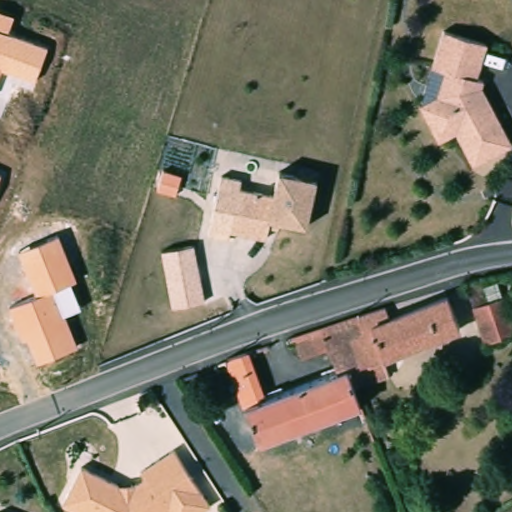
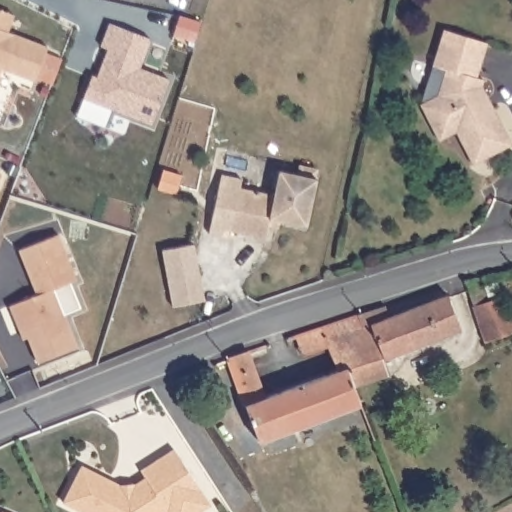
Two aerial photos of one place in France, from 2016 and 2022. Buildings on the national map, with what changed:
unchanged [(1,70),(0,72),(0,10),(15,15),(8,32),(48,47),(35,80),(1,70)]
new [(90,81),(95,84),(106,55),(99,52),(108,30),(149,46),(137,75),(166,86),(149,131),(81,104),(90,81)]
unchanged [(440,135),(424,109),(447,95),(453,71),(435,65),(445,30),(488,42),(478,77),(485,80),(483,85),(512,132),(512,145),(481,165),(462,134),(455,138),(445,144),(440,135)]
unchanged [(270,230),(266,250),(231,243),(230,250),(210,246),(225,171),(245,175),(244,185),(277,191),(282,167),(301,171),(303,162),(322,166),(320,175),(307,238),(270,230)]
unchanged [(0,174),(1,175),(0,178),(0,174)]
unchanged [(38,363),(28,338),(24,340),(10,306),(39,295),(20,251),(59,234),(77,281),(71,283),(81,309),(65,315),(77,346),(38,363)]
unchanged [(174,307),(163,250),(194,245),(205,300),(174,307)]
unchanged [(475,285),(489,280),(496,301),(508,297),(512,308),(512,329),(496,334),(492,335),(475,285)]
unchanged [(361,360),(356,346),(354,341),(359,340),(368,336),(369,336),(365,326),(452,298),(463,330),(404,352),(362,364),(361,360)]
unchanged [(243,423),(230,387),(225,388),(219,366),(220,365),(234,361),(232,359),(251,353),(262,402),(340,369),(328,345),(297,354),(291,340),(325,330),(362,318),(365,326),(369,336),(368,336),(359,340),(354,341),(356,346),(361,360),(362,364),(351,367),(354,375),(357,385),(363,401),(352,405),(352,406),(348,407),(286,431),(278,435),(261,441),(254,420),(243,423)]
unchanged [(93,512),(63,497),(81,460),(119,479),(134,481),(147,473),(142,466),(176,445),(211,502),(195,512),(171,512),(169,508),(162,512),(93,512)]

